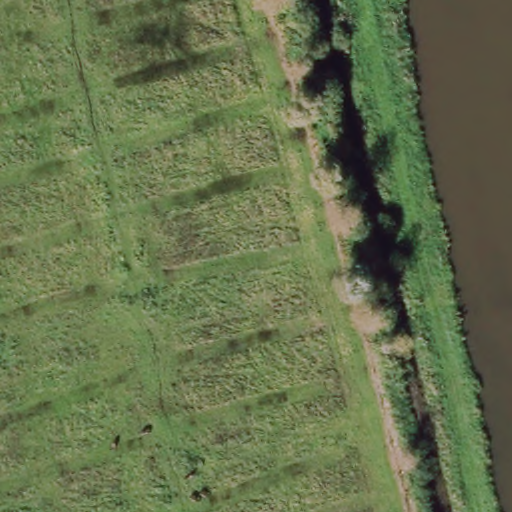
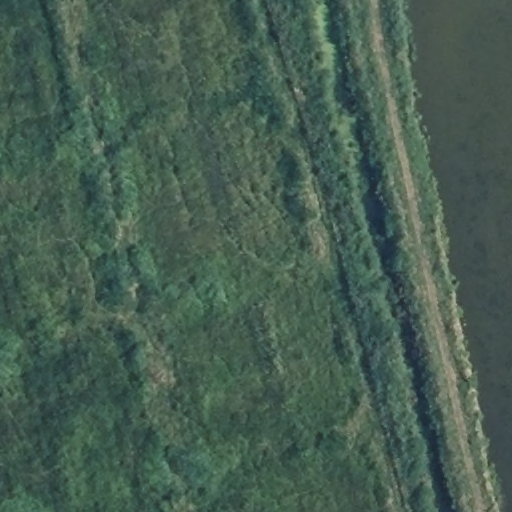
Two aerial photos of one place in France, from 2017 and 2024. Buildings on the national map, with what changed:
[]

